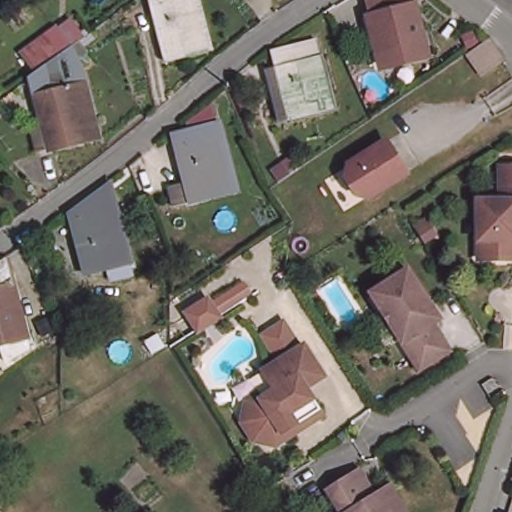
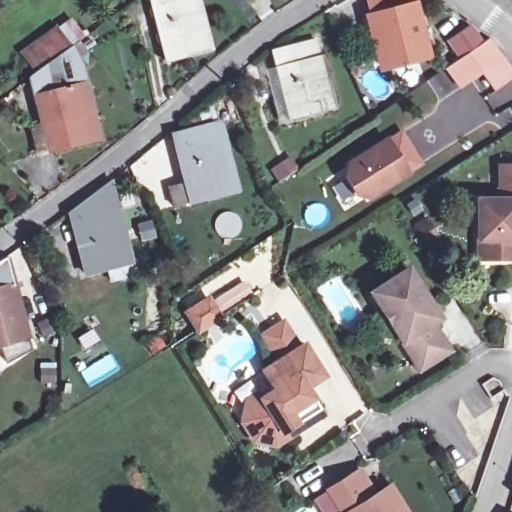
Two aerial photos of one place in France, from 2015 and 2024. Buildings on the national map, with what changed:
unchanged [(153,6),(152,0),(197,0),(207,46),(158,54),(150,7),(153,6)]
unchanged [(415,0),(428,61),(383,70),(368,0),(415,0)]
new [(483,41),(487,38),(512,71),(512,78),(493,92),(480,72),(458,89),(445,69),(458,59),(446,42),(471,22),(483,41)]
unchanged [(25,55),(60,27),(75,47),(40,74),(25,55)]
unchanged [(277,72),(281,72),(277,50),(316,44),(320,62),(324,61),(335,111),(286,120),(277,72)]
unchanged [(75,47),(80,52),(99,138),(56,146),(40,79),(40,74),(75,47)]
demolished [(470,62),(483,54),(495,68),(465,87),(455,72),(470,62)]
unchanged [(178,131),(221,122),(236,192),(194,201),(178,131)]
unchanged [(410,177),(361,205),(342,167),(392,142),(410,177)]
unchanged [(474,200),(497,199),(497,187),(496,166),(512,166),(512,260),(490,260),(476,259),(475,242),(474,200)]
unchanged [(109,188),(131,267),(89,278),(72,216),(109,188)]
unchanged [(30,347),(0,353),(0,271),(9,265),(30,347)]
unchanged [(366,297),(403,272),(435,324),(428,327),(445,357),(415,375),(366,297)]
unchanged [(160,359),(146,367),(136,352),(160,337),(168,332),(179,347),(160,359)]
unchanged [(268,394),(257,375),(299,347),(321,381),(303,393),(310,405),(288,418),(295,428),(272,443),(255,438),(246,423),(248,407),(256,402),(268,394)]
unchanged [(320,421),(274,450),(250,445),(237,423),(241,402),(252,396),(256,402),(248,407),(246,423),(255,438),(272,443),(295,428),(288,418),(310,405),(320,421)]
unchanged [(327,499),(350,485),(361,477),(376,503),(390,495),(400,512),(335,512),(327,499)]

